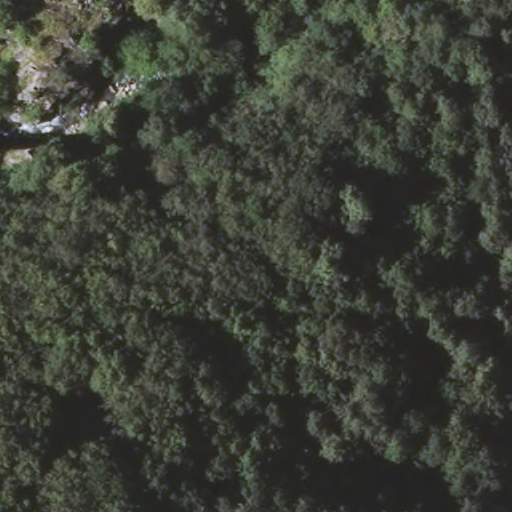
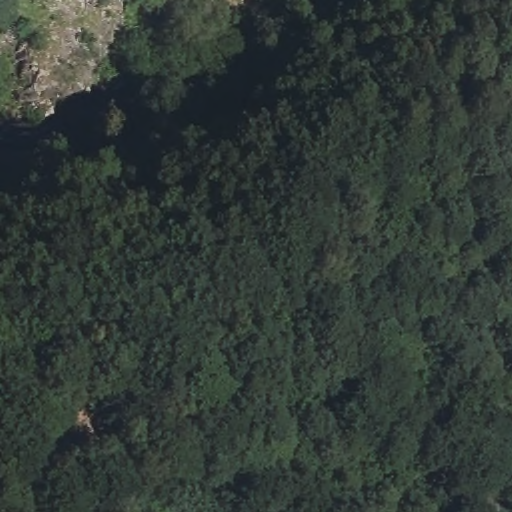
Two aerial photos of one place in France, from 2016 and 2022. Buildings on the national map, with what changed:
[]

